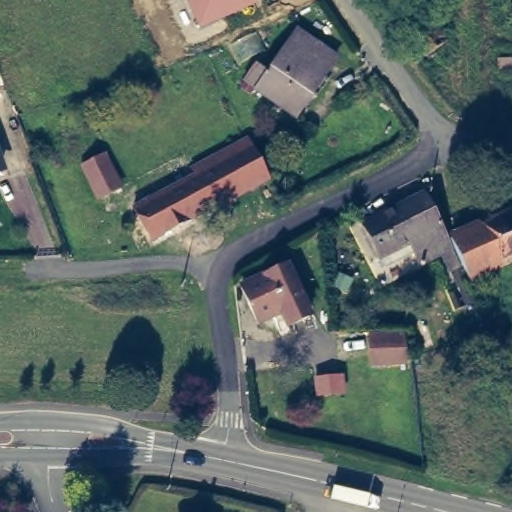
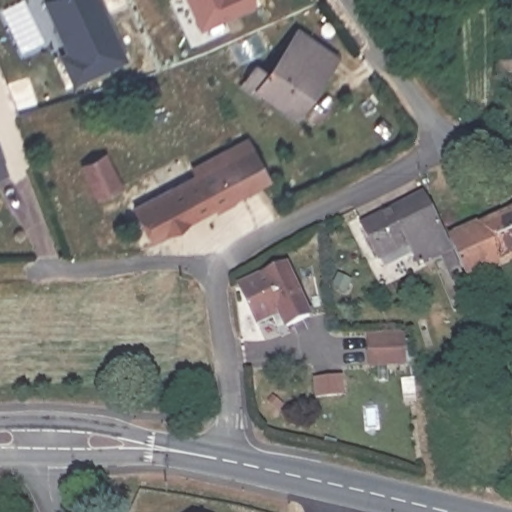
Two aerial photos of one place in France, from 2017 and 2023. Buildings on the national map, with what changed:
new [(57,55),(66,51),(43,0),(101,0),(127,60),(71,85),(57,55)]
unchanged [(198,29),(185,0),(255,0),(257,5),(198,29)]
unchanged [(508,0),(512,0),(512,17),(508,0)]
unchanged [(434,30),(442,44),(422,57),(417,51),(414,45),(422,39),(434,30)]
unchanged [(251,70),(266,80),(297,41),(333,67),(292,124),(241,84),(251,70)]
unchanged [(269,189),(151,245),(135,210),(199,178),(192,166),(244,141),(269,189)]
unchanged [(107,152),(122,191),(102,200),(86,160),(107,152)]
unchanged [(0,175),(0,153),(9,172),(0,175)]
unchanged [(420,189),(455,260),(444,265),(436,246),(417,255),(412,247),(382,261),(362,217),(420,189)]
unchanged [(511,211),(508,206),(512,205),(512,263),(469,282),(451,240),(511,211)]
unchanged [(290,262),(310,313),(289,323),(285,318),(276,323),(269,314),(257,317),(244,282),(290,262)]
unchanged [(401,335),(402,365),(366,366),(365,337),(401,335)]

